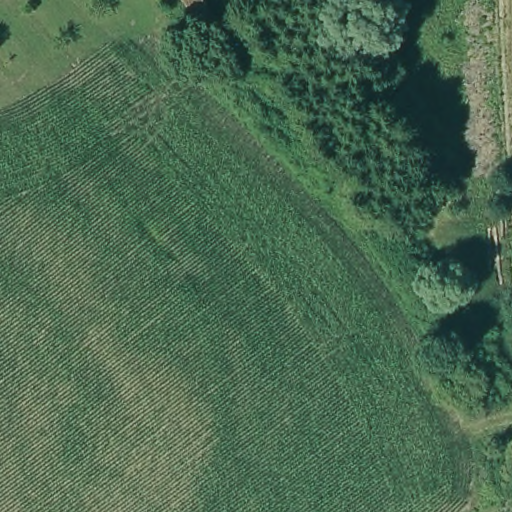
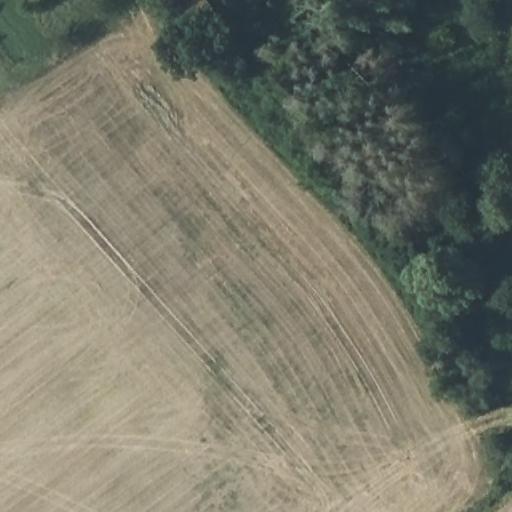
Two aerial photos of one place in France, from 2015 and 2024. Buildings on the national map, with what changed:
unchanged [(206,27),(188,0),(209,0),(221,16),(206,27)]

